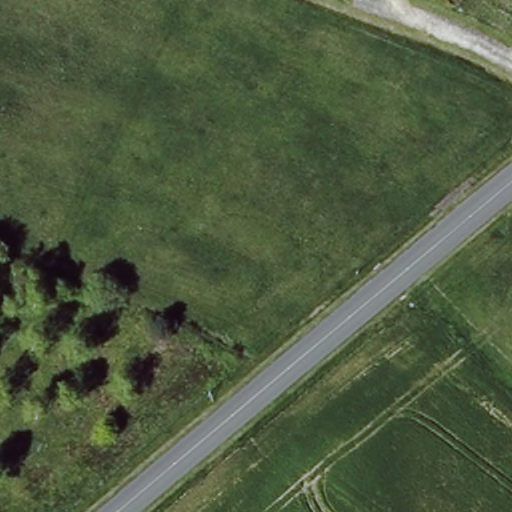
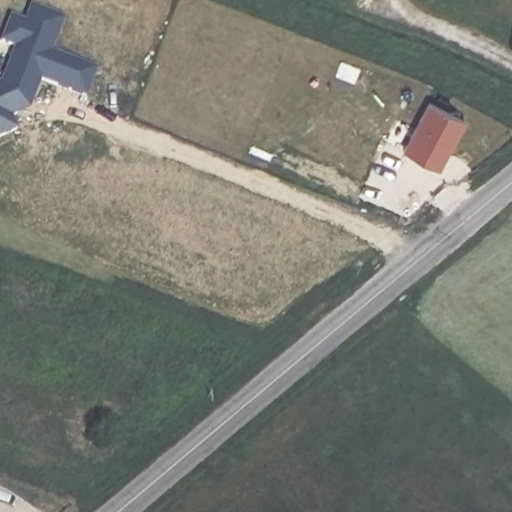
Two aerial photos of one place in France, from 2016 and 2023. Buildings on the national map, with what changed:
new [(10,114),(16,128),(0,135),(0,81),(1,81),(15,45),(1,40),(16,0),(21,0),(64,17),(51,50),(96,67),(86,95),(41,77),(34,94),(16,111),(10,114)]
new [(430,100),(465,118),(439,167),(404,148),(430,100)]

